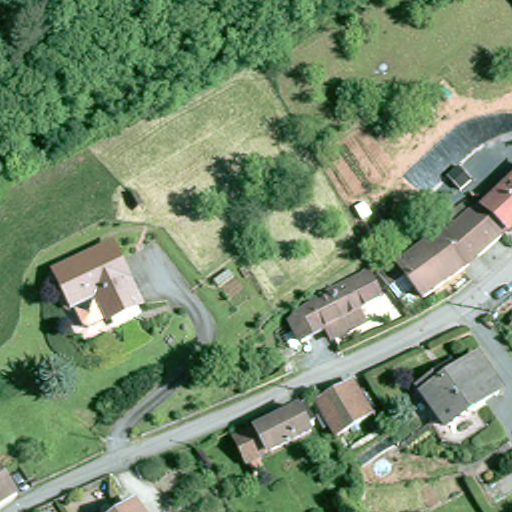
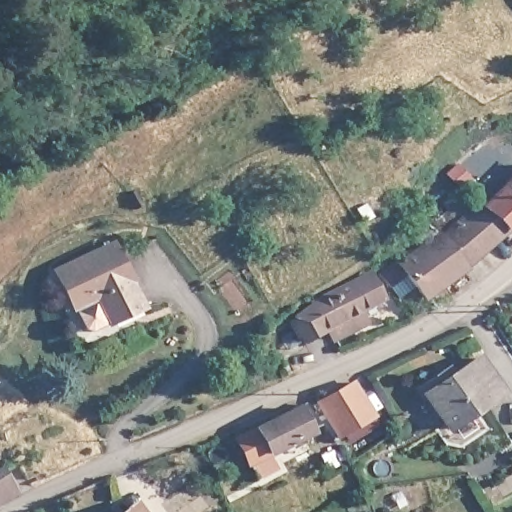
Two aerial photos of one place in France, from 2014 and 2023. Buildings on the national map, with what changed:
unchanged [(512,184),(512,228),(490,206),(512,184)]
unchanged [(146,202),(135,210),(126,197),(137,189),(146,202)]
unchanged [(447,242),(487,214),(506,239),(467,268),(447,242)]
unchanged [(382,273),(399,260),(403,265),(443,236),(447,242),(467,268),(427,297),(420,287),(403,300),(394,287),(382,273)]
unchanged [(60,275),(118,250),(147,313),(95,336),(87,334),(60,275)]
unchanged [(357,328),(338,338),(331,325),(329,327),(330,330),(308,342),(296,320),(319,308),(317,305),(375,275),(386,297),(363,309),(370,322),(357,328)]
unchanged [(501,393),(447,430),(420,389),(440,376),(448,370),(452,376),(478,358),(501,393)]
unchanged [(376,422),(341,441),(322,406),(356,387),(376,422)]
unchanged [(236,438),(305,405),(315,425),(308,427),(310,431),(248,462),(236,438)]
unchanged [(0,507),(0,477),(3,475),(17,496),(0,507)]
unchanged [(143,512),(135,512),(140,508),(143,512)]

